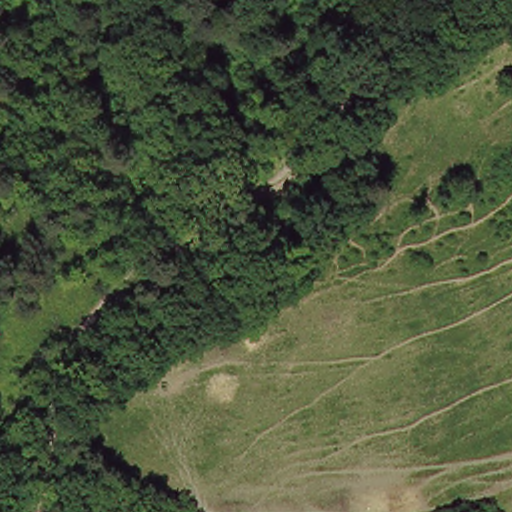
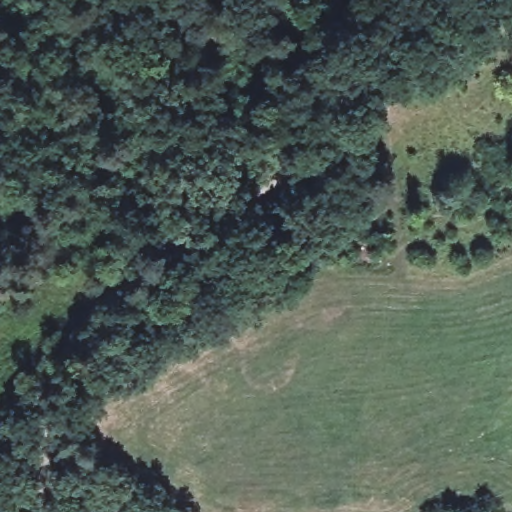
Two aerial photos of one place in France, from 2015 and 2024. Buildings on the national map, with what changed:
unchanged [(0,336),(0,334),(1,335),(0,336)]

